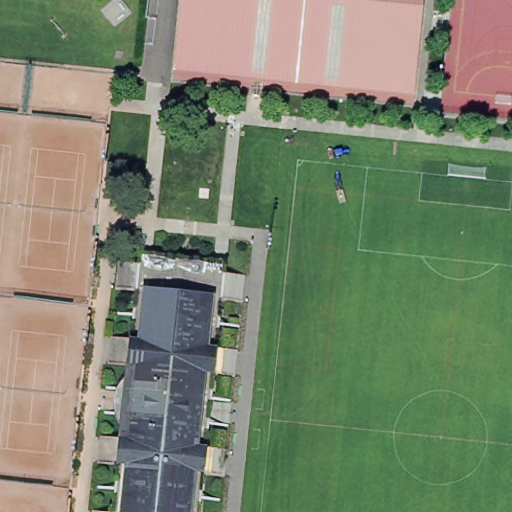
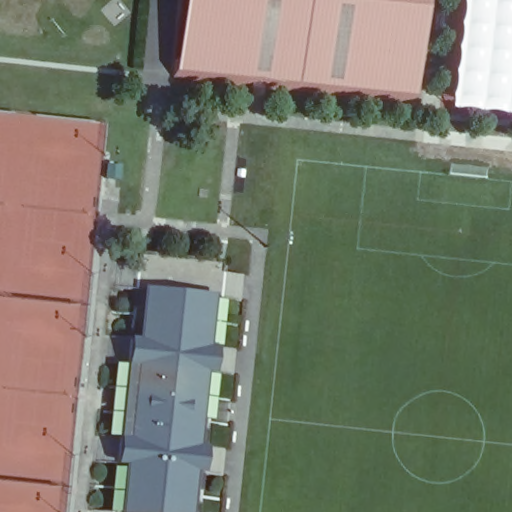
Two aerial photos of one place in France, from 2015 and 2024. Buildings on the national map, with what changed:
unchanged [(413,106),(248,89),(247,99),(235,97),(236,87),(176,81),(185,0),(424,0),(413,106)]
new [(512,119),(444,112),(455,0),(512,0),(512,119)]
unchanged [(208,357),(219,357),(208,473),(193,474),(192,512),(118,512),(124,466),(114,465),(124,343),(138,344),(144,290),(213,298),(208,357)]

